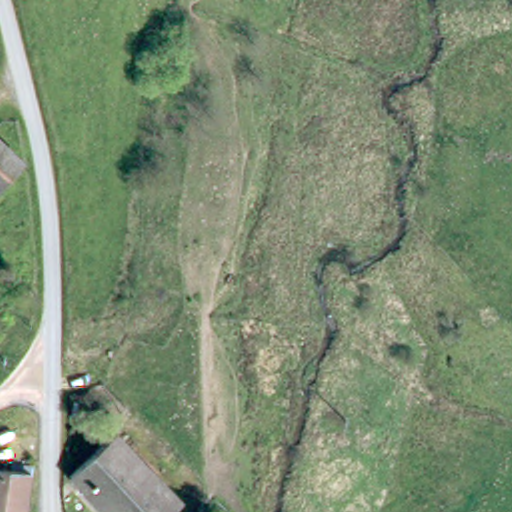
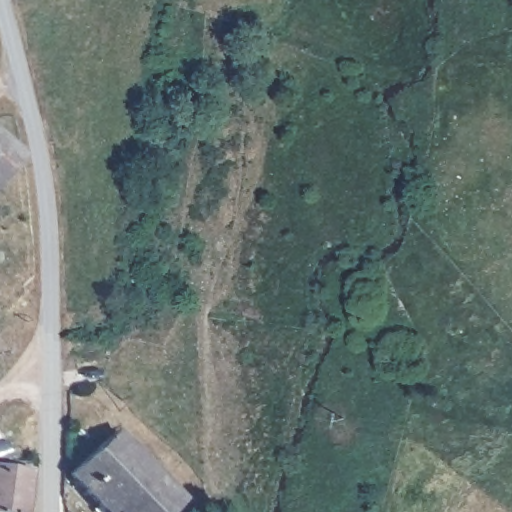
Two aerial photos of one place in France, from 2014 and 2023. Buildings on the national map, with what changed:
unchanged [(0,179),(0,130),(25,157),(0,179)]
unchanged [(122,423),(116,429),(99,413),(107,406),(122,423)]
unchanged [(168,512),(110,512),(71,473),(114,430),(182,498),(168,512)]
unchanged [(0,477),(10,479),(12,471),(30,475),(22,512),(0,512),(0,477)]

